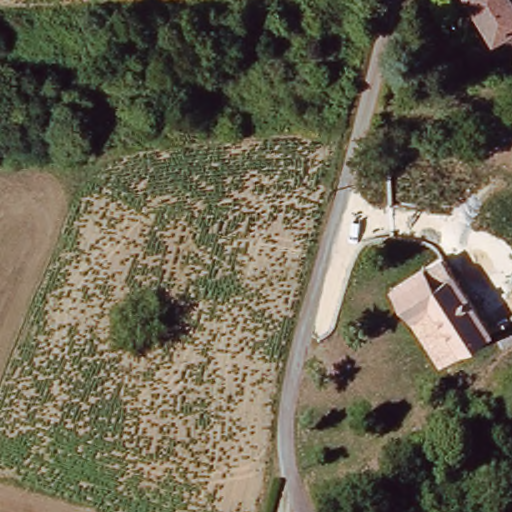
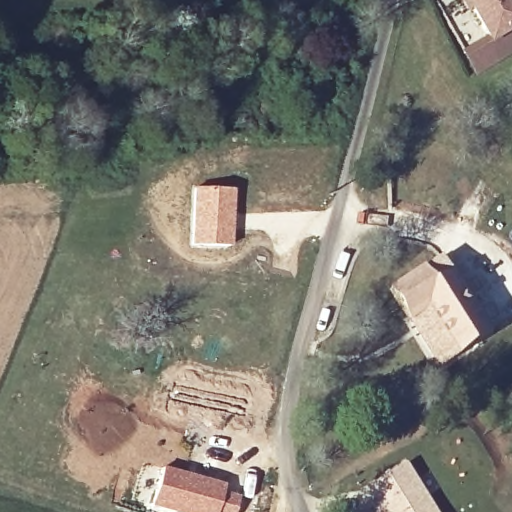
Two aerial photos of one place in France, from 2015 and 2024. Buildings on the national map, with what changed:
unchanged [(511,0),(512,3),(512,39),(464,64),(454,33),(478,21),(469,0),(511,0)]
new [(191,187),(233,188),(233,245),(189,245),(191,187)]
unchanged [(492,334),(439,366),(389,288),(440,255),(492,334)]
new [(406,464),(438,512),(410,512),(387,476),(406,464)]
new [(161,467),(226,485),(226,487),(241,492),(236,512),(179,512),(151,505),(161,467)]
new [(387,476),(410,512),(382,512),(368,490),(387,476)]

